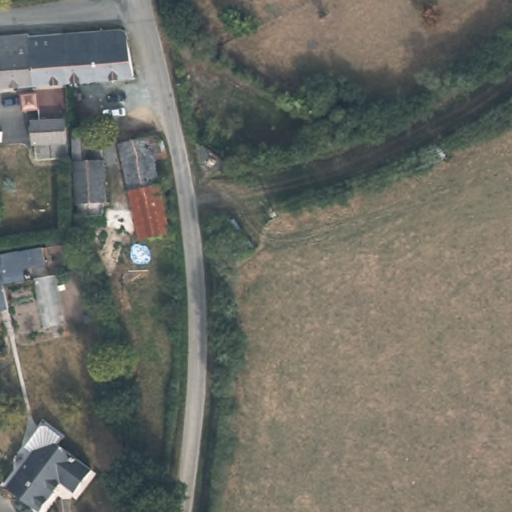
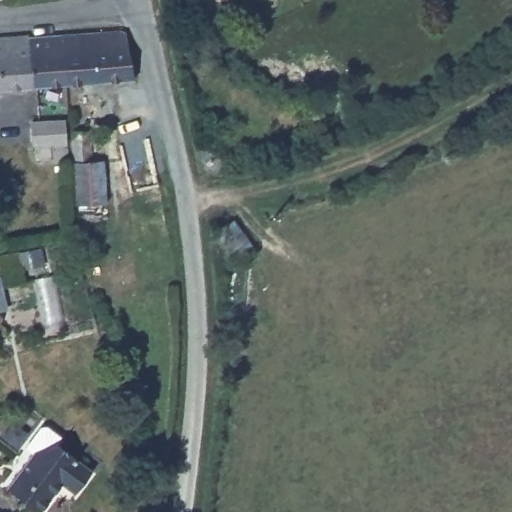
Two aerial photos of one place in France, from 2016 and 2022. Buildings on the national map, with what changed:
unchanged [(0,31),(30,28),(31,36),(33,81),(0,83),(0,31)]
unchanged [(66,81),(63,35),(125,33),(130,80),(66,81)]
unchanged [(33,81),(31,36),(63,35),(66,81),(33,81)]
unchanged [(64,158),(35,155),(36,139),(31,138),(35,111),(67,116),(64,158)]
unchanged [(77,124),(100,128),(100,160),(105,165),(102,204),(72,199),(77,124)]
unchanged [(131,238),(110,142),(149,134),(151,144),(161,143),(164,154),(156,156),(170,231),(131,238)]
unchanged [(256,248),(236,262),(212,235),(235,218),(256,248)]
unchanged [(26,446),(40,426),(46,426),(62,436),(57,443),(92,469),(76,492),(62,483),(40,512),(6,488),(33,451),(26,446)]

